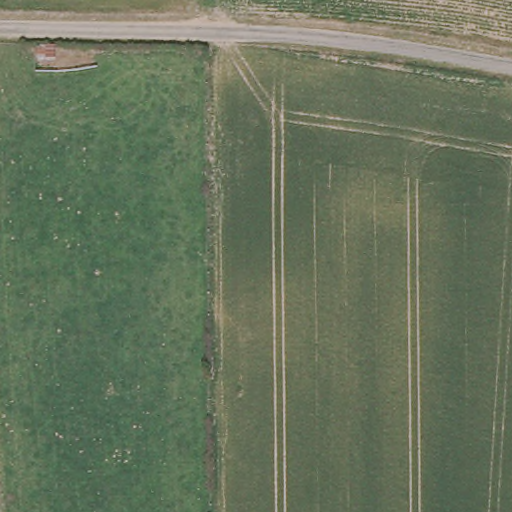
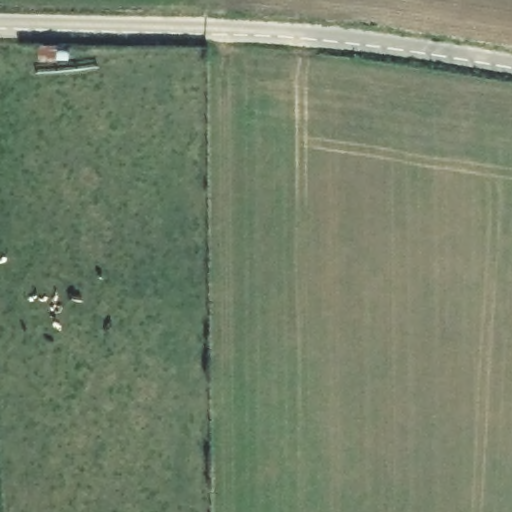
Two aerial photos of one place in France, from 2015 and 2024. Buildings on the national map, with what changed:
unchanged [(39,65),(40,46),(58,47),(57,64),(39,65)]

